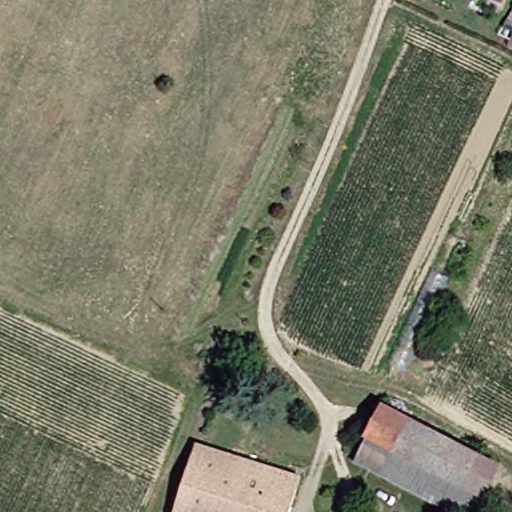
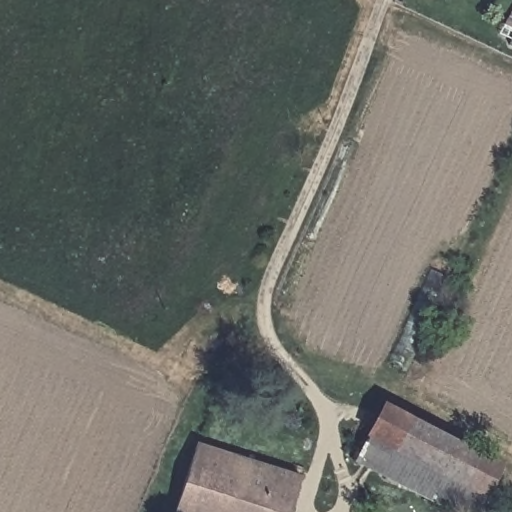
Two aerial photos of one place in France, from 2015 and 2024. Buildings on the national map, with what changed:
unchanged [(490,466),(474,497),(358,437),(374,406),(490,466)]
unchanged [(474,497),(466,512),(443,512),(345,461),(358,437),(474,497)]
unchanged [(186,443),(290,476),(281,506),(279,512),(165,512),(186,443)]

